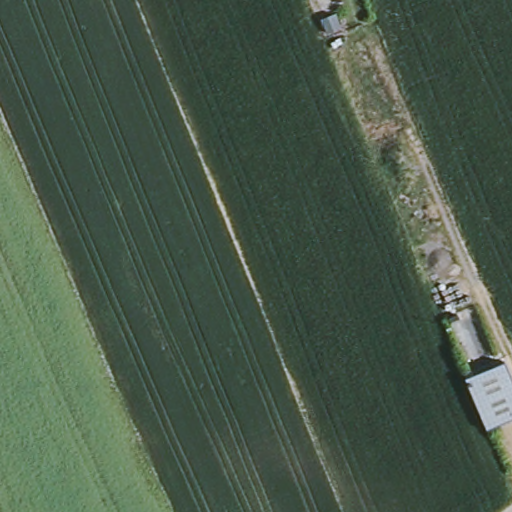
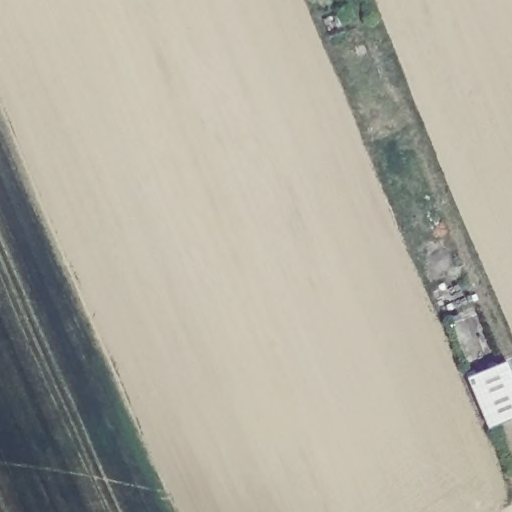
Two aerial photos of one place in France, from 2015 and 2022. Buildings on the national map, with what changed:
unchanged [(512,420),(486,430),(464,377),(502,360),(512,381),(512,420)]

